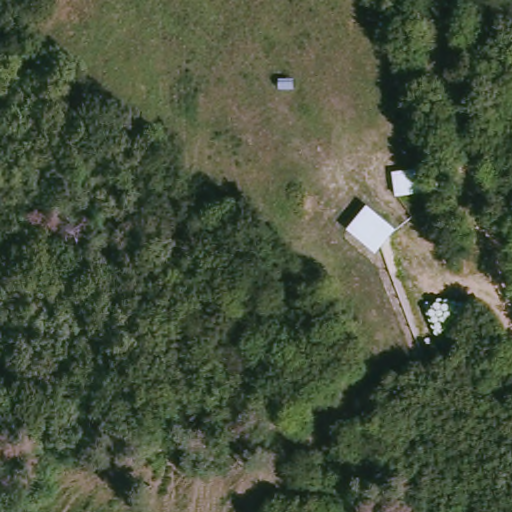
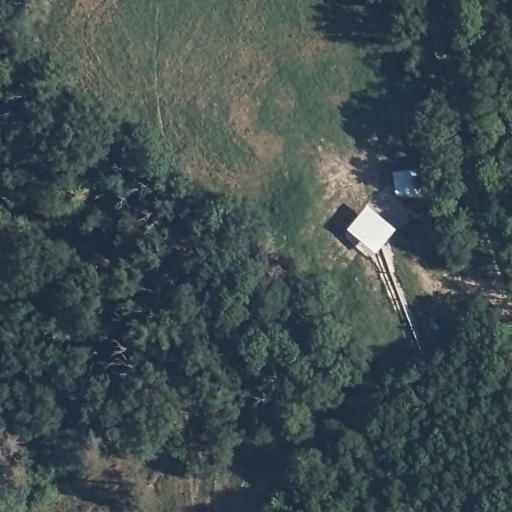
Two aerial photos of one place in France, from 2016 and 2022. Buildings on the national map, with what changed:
unchanged [(432,165),(435,191),(393,198),(390,171),(432,165)]
unchanged [(395,229),(374,257),(344,229),(365,204),(395,229)]

